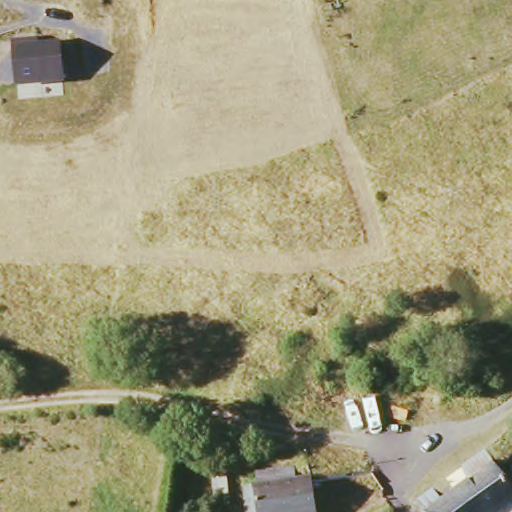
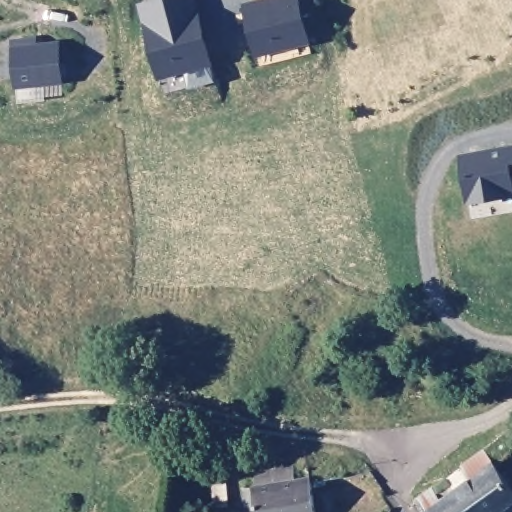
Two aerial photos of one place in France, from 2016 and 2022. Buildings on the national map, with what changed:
new [(192,0),(214,81),(162,94),(138,4),(154,0),(192,0)]
new [(297,0),(308,45),(257,58),(245,9),(282,0),(297,0)]
unchanged [(15,89),(13,47),(12,41),(38,38),(40,45),(62,44),(65,85),(15,89)]
new [(467,203),(460,157),(512,148),(512,195),(467,203)]
unchanged [(512,490),(512,512),(429,512),(443,503),(456,509),(471,496),(465,481),(492,461),(512,490)]
unchanged [(227,501),(215,502),(213,471),(225,470),(227,501)]
unchanged [(299,484),(312,484),(315,512),(250,512),(247,491),(256,490),(255,475),(297,471),(299,484)]

